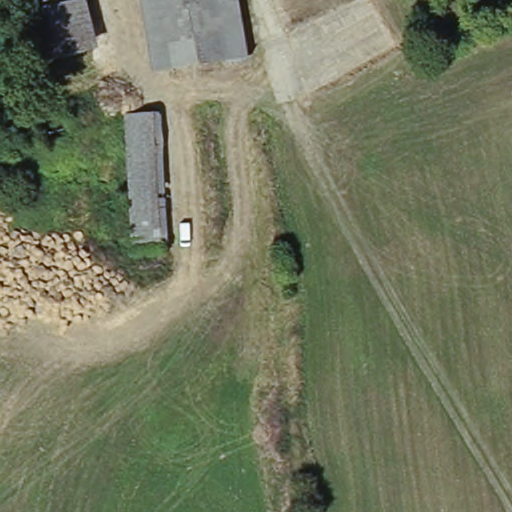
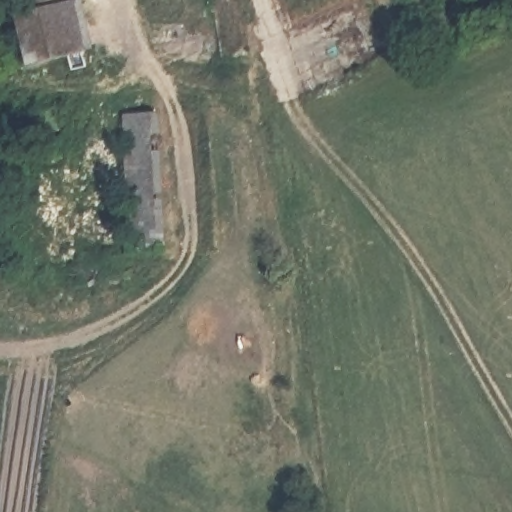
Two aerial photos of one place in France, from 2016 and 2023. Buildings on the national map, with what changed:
unchanged [(35,72),(17,0),(87,0),(100,54),(35,72)]
demolished [(155,78),(142,0),(239,0),(250,64),(155,78)]
unchanged [(161,118),(170,258),(134,261),(125,122),(161,118)]

